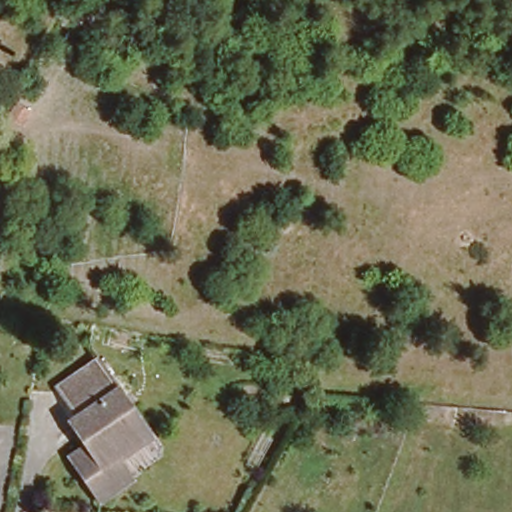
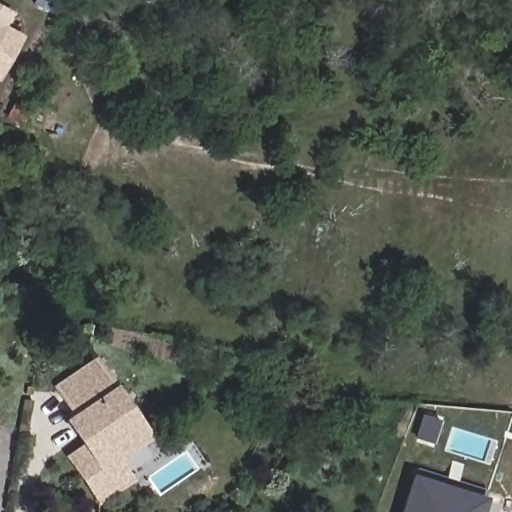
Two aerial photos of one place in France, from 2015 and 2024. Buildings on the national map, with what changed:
new [(24,36),(0,79),(0,5),(14,13),(6,26),(24,36)]
unchanged [(13,101),(32,111),(31,114),(25,125),(6,118),(10,110),(13,101)]
unchanged [(92,363),(121,409),(115,413),(136,448),(113,463),(126,483),(94,504),(64,459),(80,449),(73,438),(80,433),(51,389),(92,363)]
new [(420,475),(490,495),(487,505),(485,512),(409,512),(416,485),(420,475)]

